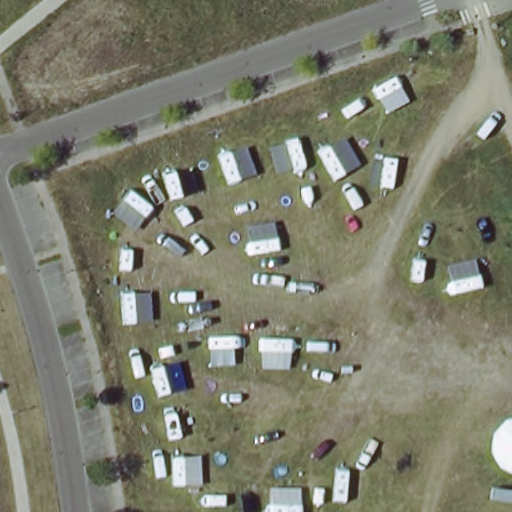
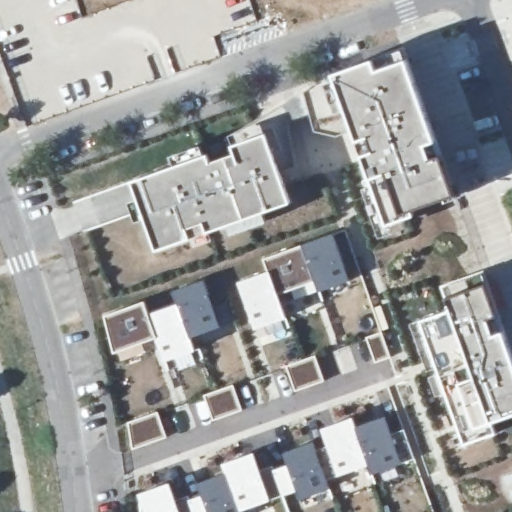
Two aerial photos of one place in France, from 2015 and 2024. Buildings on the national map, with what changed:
new [(206,153),(208,163),(236,155),(233,144),(230,135),(334,73),(373,60),(377,70),(405,58),(455,194),(412,209),(413,217),(386,227),(371,179),(353,127),(335,136),(312,128),(310,115),(288,124),(293,166),(281,169),(293,202),(158,252),(131,181),(206,153)]
new [(280,269),(275,255),(344,228),(361,270),(329,283),(325,273),(292,286),(300,311),(264,324),(247,281),(280,269)]
new [(159,297),(163,308),(191,300),(187,287),(220,272),(237,321),(202,332),(207,344),(170,357),(160,335),(125,347),(114,312),(159,297)]
new [(453,362),(439,367),(422,319),(473,299),(470,290),(512,274),(512,424),(482,436),(453,362)]
new [(395,358),(379,365),(370,339),(385,332),(395,358)]
new [(323,354),(332,381),(300,393),(292,364),(323,354)]
new [(240,383),(248,409),(216,420),(208,393),(240,383)]
new [(181,480),(185,495),(194,493),(196,499),(213,493),(209,481),(235,472),(231,461),(268,450),(273,466),(279,464),(282,468),(298,463),(293,451),(320,441),(323,447),(334,443),(328,425),(368,413),(369,421),(383,420),(394,408),(409,458),(371,473),(366,464),(350,470),(353,481),(286,501),(283,495),(252,506),(255,512),(146,512),(146,491),(181,480)]
new [(166,409),(174,436),(138,448),(135,419),(166,409)]

